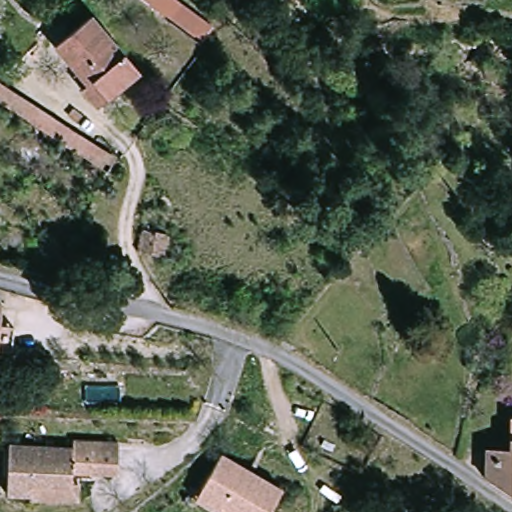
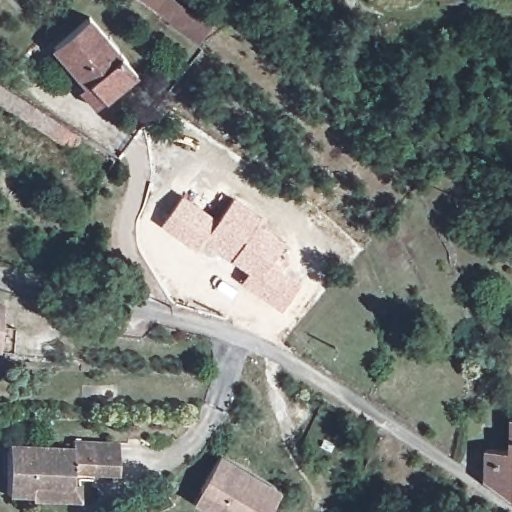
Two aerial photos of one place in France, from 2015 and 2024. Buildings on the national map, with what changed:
unchanged [(201,44),(140,0),(178,0),(213,25),(201,44)]
unchanged [(80,89),(86,84),(58,40),(98,13),(125,56),(136,74),(128,80),(107,95),(90,105),(80,89)]
unchanged [(106,170),(0,102),(0,86),(115,159),(106,170)]
new [(161,225),(183,194),(219,219),(233,195),(262,215),(258,222),(286,240),(270,262),(300,283),(281,308),(241,281),(248,271),(203,237),(195,249),(161,225)]
unchanged [(171,262),(146,258),(151,237),(175,241),(171,262)]
unchanged [(14,351),(0,350),(0,302),(5,303),(3,323),(17,324),(14,351)]
unchanged [(481,451),(506,454),(509,418),(512,418),(512,499),(479,478),(481,451)]
unchanged [(80,500),(32,499),(32,495),(8,494),(10,444),(73,447),(73,439),(118,442),(117,473),(72,471),(72,481),(80,482),(80,500)]
unchanged [(195,507),(200,494),(201,494),(218,459),(283,489),(272,512),(208,512),(195,507)]

